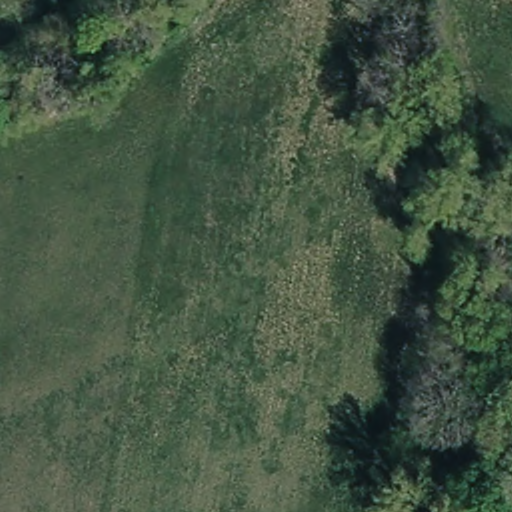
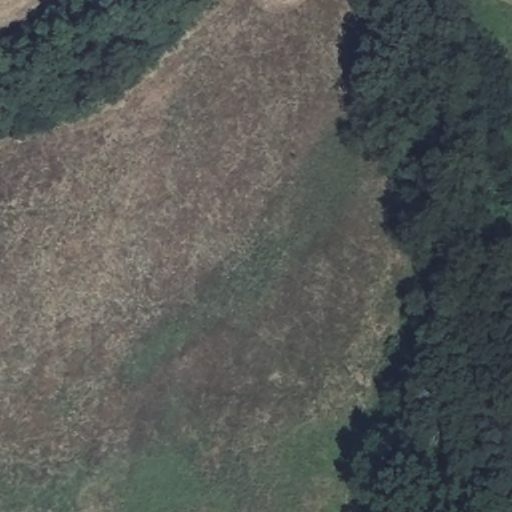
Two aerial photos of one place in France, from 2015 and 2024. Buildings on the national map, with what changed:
[]

